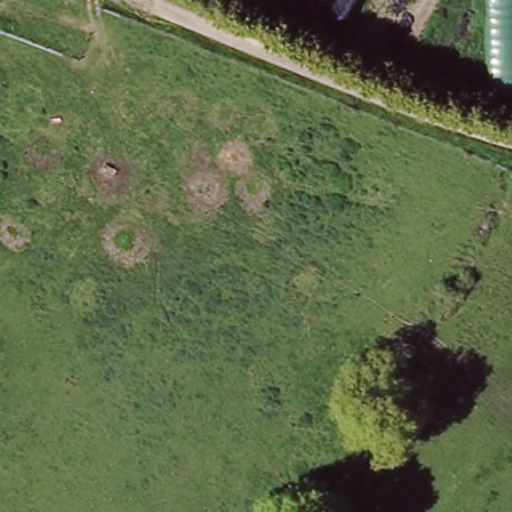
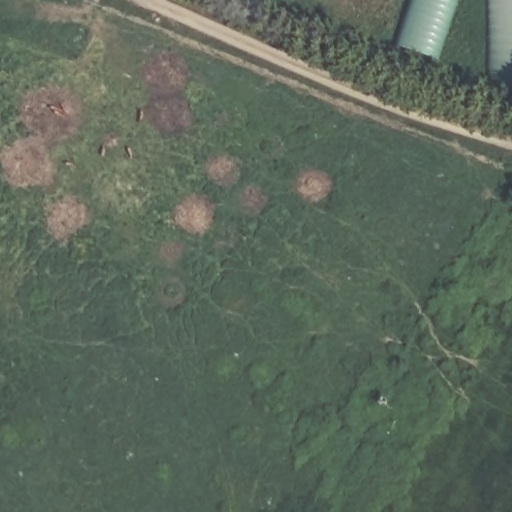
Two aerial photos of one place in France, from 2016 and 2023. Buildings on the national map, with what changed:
new [(401,47),(417,0),(464,0),(444,62),(401,47)]
unchanged [(487,0),(512,0),(512,81),(488,81),(487,0)]

